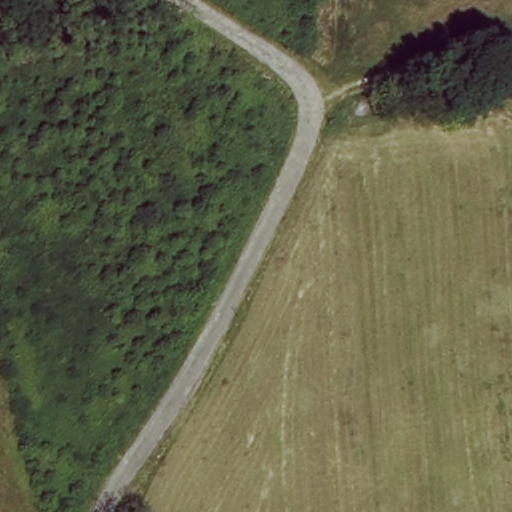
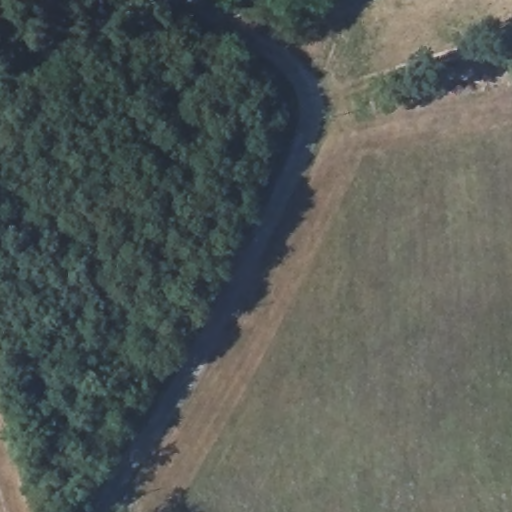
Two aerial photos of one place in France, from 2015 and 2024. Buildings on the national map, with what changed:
[]

